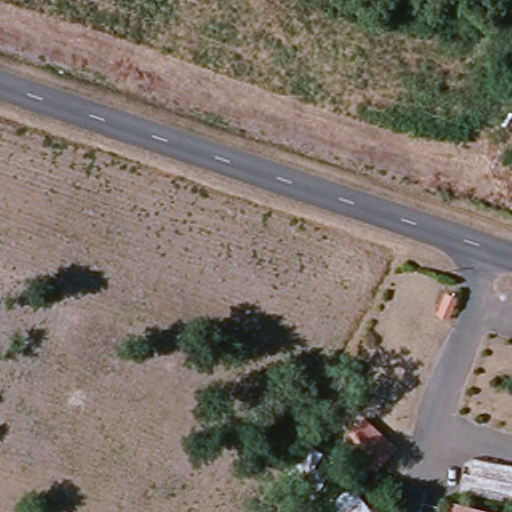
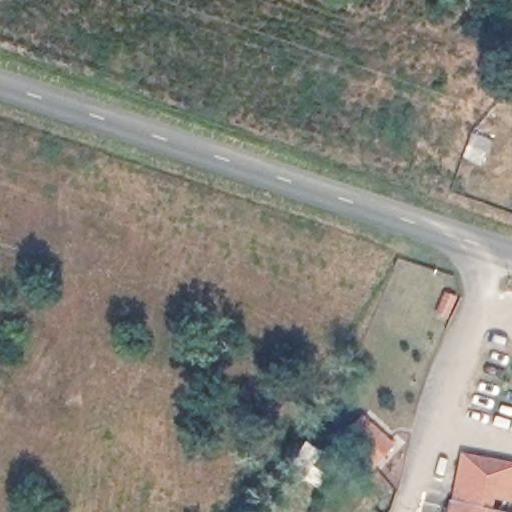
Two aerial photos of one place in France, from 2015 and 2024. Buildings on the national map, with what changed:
unchanged [(453,294),(446,315),(437,312),(444,291),(453,294)]
unchanged [(374,472),(341,442),(368,417),(400,447),(374,472)]
new [(452,501),(463,452),(512,461),(512,501),(499,500),(496,510),(506,512),(450,512),(452,501)]
demolished [(475,512),(452,512),(453,507),(475,512)]

